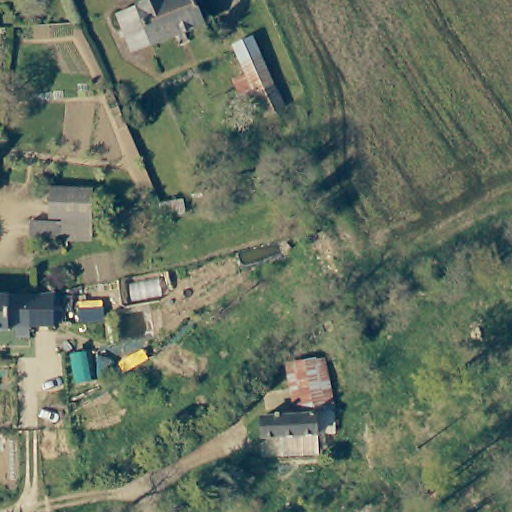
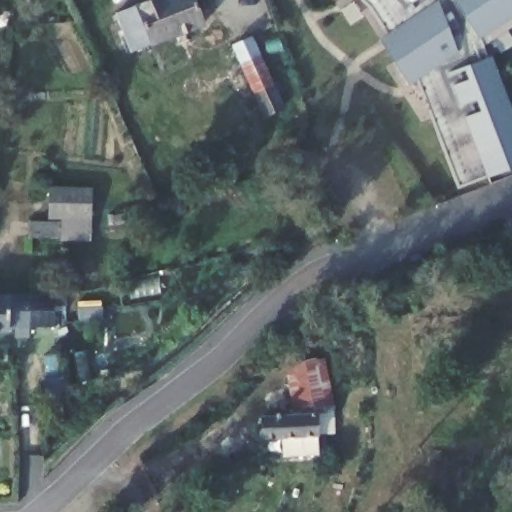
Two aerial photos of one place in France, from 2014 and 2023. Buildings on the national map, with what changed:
unchanged [(201,20),(149,40),(126,46),(114,11),(134,6),(149,0),(197,0),(201,20)]
new [(484,46),(488,57),(492,56),(512,111),(512,168),(489,176),(458,186),(417,79),(408,84),(379,38),(386,32),(368,5),(362,0),(512,0),(512,27),(484,46)]
unchanged [(232,80),(224,60),(237,55),(234,46),(250,39),(263,67),(237,78),(232,80)]
unchanged [(245,78),(267,70),(283,105),(265,112),(245,78)]
unchanged [(89,236),(63,235),(64,212),(48,211),(49,183),(88,185),(89,236)]
unchanged [(54,222),(54,236),(30,235),(29,221),(54,222)]
unchanged [(32,291),(33,331),(19,331),(19,320),(12,320),(12,326),(0,326),(0,290),(31,290),(32,291)]
unchanged [(288,363),(323,356),(333,403),(300,408),(288,363)]
unchanged [(264,445),(263,427),(317,425),(318,444),(264,445)]

